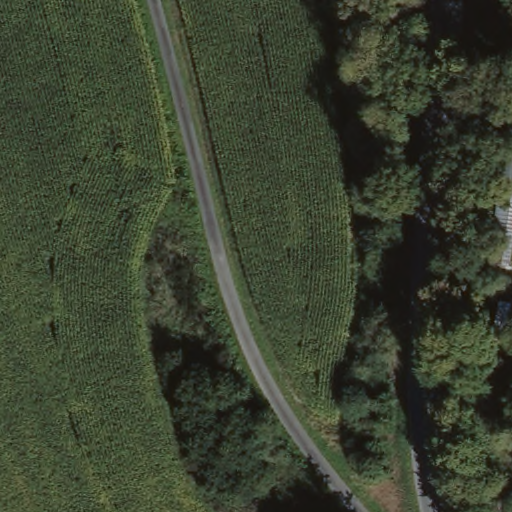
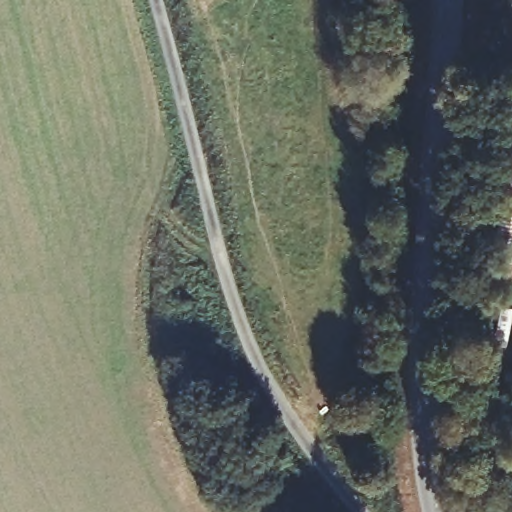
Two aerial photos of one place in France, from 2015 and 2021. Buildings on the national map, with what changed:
unchanged [(487,251),(512,98),(512,207),(504,255),(487,251)]

